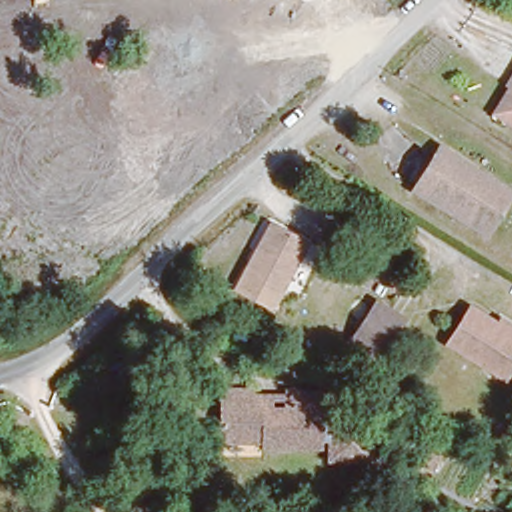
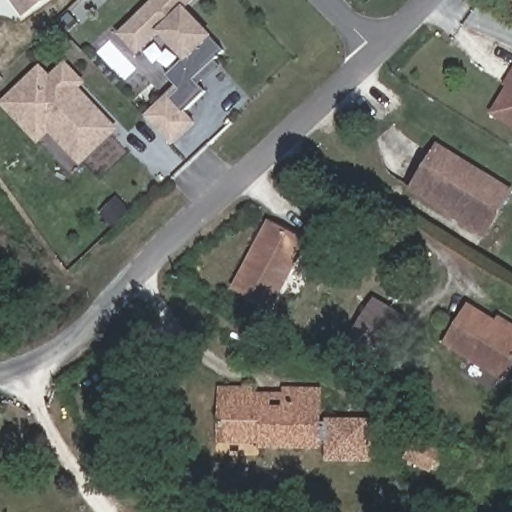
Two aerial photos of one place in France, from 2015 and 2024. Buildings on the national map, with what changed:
new [(10,0),(47,0),(22,17),(10,0)]
new [(152,0),(193,0),(185,8),(212,36),(211,39),(222,50),(216,58),(219,65),(199,85),(205,92),(185,111),(195,124),(172,144),(144,116),(175,85),(166,76),(183,61),(157,34),(137,55),(117,34),(152,0)]
new [(117,130),(80,165),(50,133),(38,144),(0,104),(0,102),(39,64),(49,75),(64,61),(84,83),(80,89),(117,130)]
unchanged [(500,108),(512,88),(512,115),(500,108)]
unchanged [(485,228),(415,187),(435,152),(442,143),(482,168),(510,185),(485,228)]
new [(115,197),(129,211),(111,229),(97,214),(115,197)]
unchanged [(310,237),(273,304),(237,284),(257,249),(261,252),(279,219),(310,237)]
unchanged [(347,335),(372,293),(387,302),(401,310),(376,352),(362,344),(347,335)]
unchanged [(496,310),(512,319),(512,357),(503,372),(463,348),(443,338),(464,301),(485,313),(492,315),(496,310)]
unchanged [(251,383),(250,389),(263,389),(263,393),(288,394),(288,385),(321,386),(320,418),(368,419),(367,454),(328,453),(329,439),(320,438),(320,444),(263,443),(263,437),(222,436),(221,382),(251,383)]

